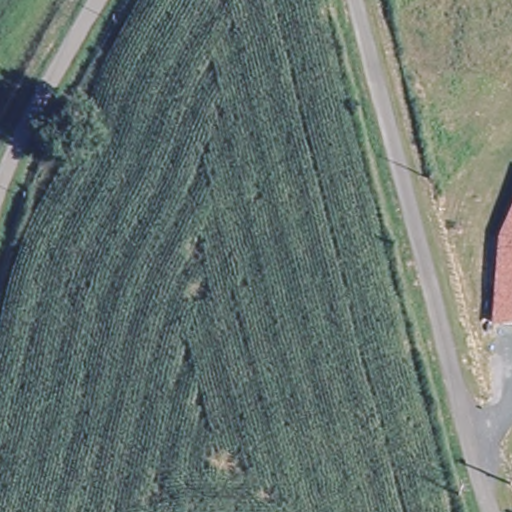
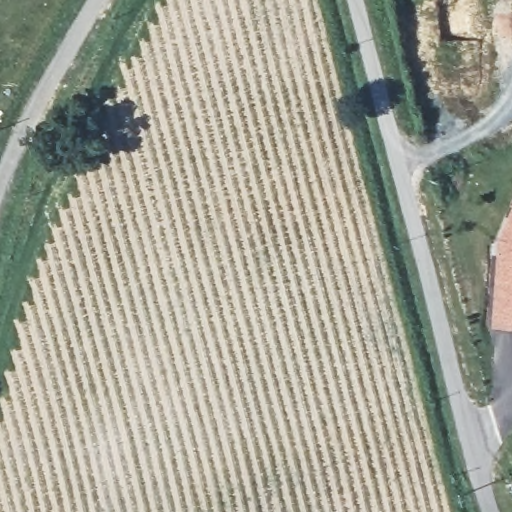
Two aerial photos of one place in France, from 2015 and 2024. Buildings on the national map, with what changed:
unchanged [(491,330),(498,239),(512,209),(512,331),(491,330)]

